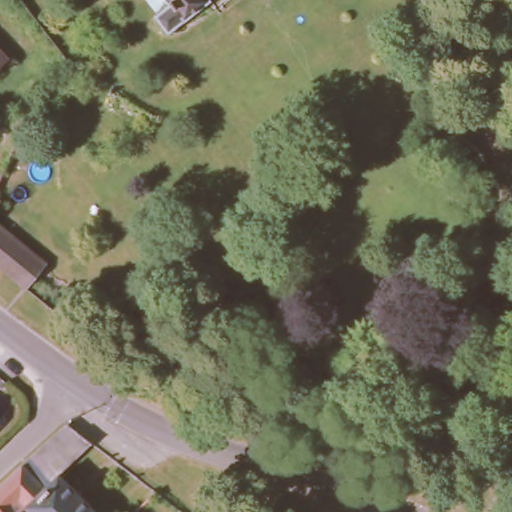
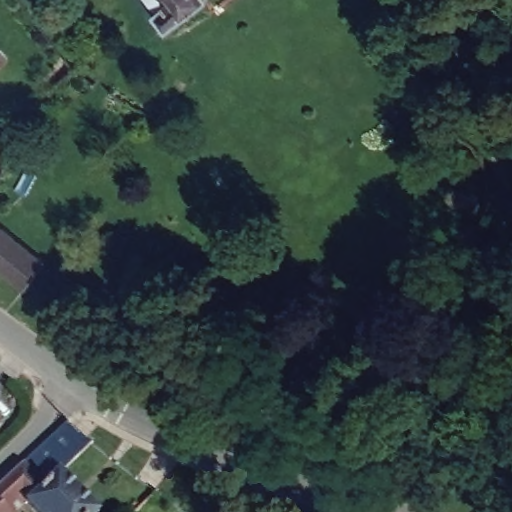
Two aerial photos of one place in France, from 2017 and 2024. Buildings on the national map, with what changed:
unchanged [(207,1),(168,32),(155,17),(160,12),(151,0),(207,0),(207,1)]
unchanged [(0,68),(0,47),(11,59),(0,68)]
unchanged [(23,284),(0,266),(0,226),(42,258),(23,284)]
unchanged [(92,443),(57,476),(92,512),(31,512),(25,505),(17,512),(0,512),(0,484),(66,423),(92,443)]

